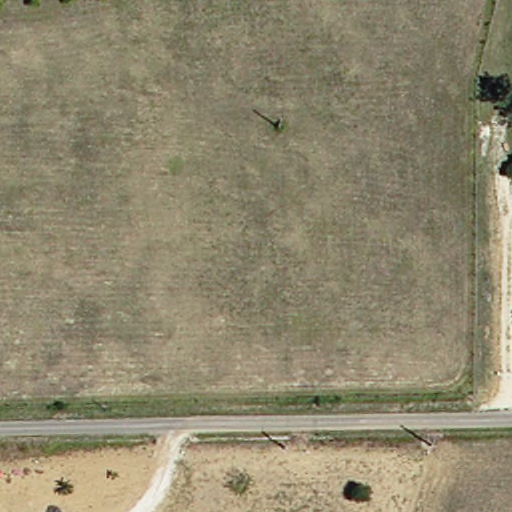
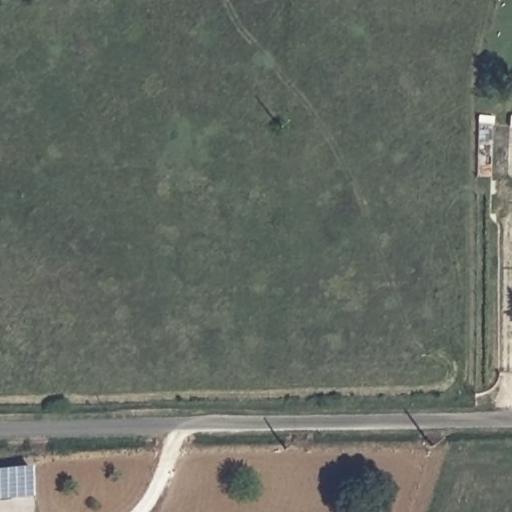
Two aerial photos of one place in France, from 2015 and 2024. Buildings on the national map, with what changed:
new [(0,471),(31,468),(34,497),(0,501),(0,471)]

